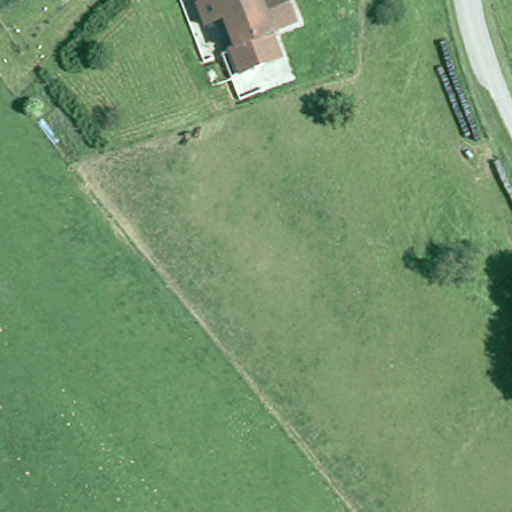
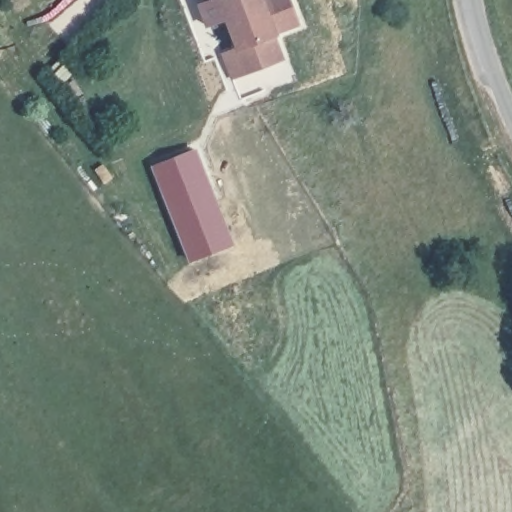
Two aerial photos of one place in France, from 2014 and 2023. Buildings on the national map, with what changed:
unchanged [(239,50),(227,19),(207,25),(201,4),(209,1),(209,0),(292,0),(300,26),(275,35),(283,60),(252,71),(240,76),(232,52),(239,50)]
new [(195,149),(234,245),(190,262),(152,166),(195,149)]

